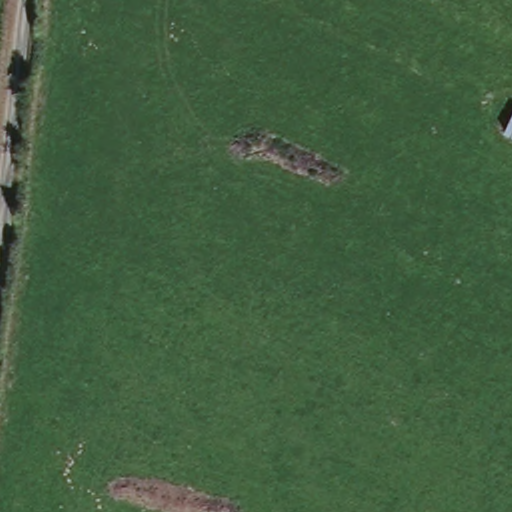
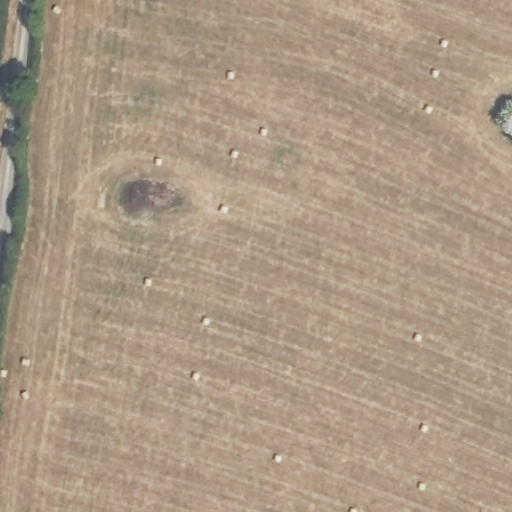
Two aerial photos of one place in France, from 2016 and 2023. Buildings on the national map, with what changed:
unchanged [(509,132),(512,127),(512,133),(509,132)]

